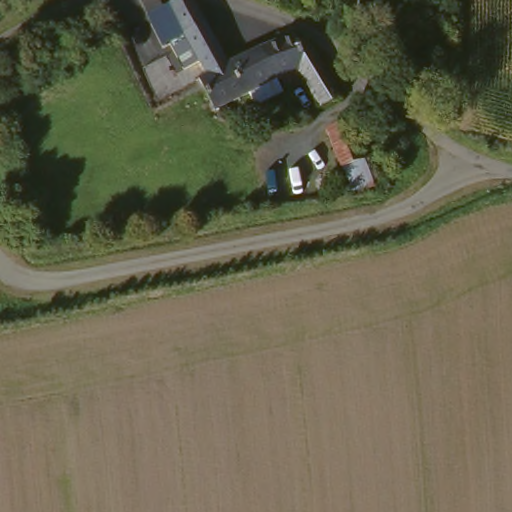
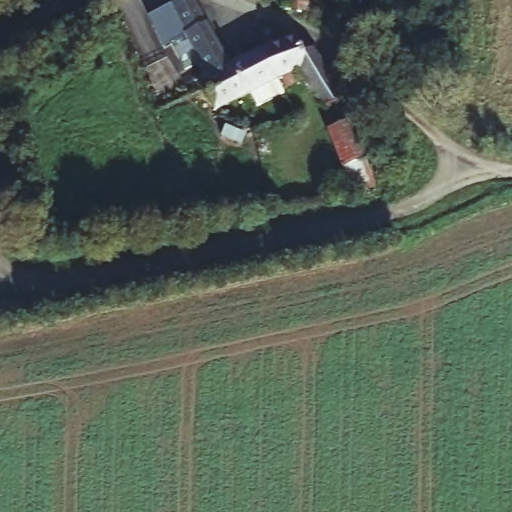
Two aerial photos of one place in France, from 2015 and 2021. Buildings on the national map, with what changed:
unchanged [(182,0),(184,3),(196,23),(218,66),(197,76),(175,34),(160,4),(179,0),(182,0)]
unchanged [(278,8),(278,0),(303,0),(302,10),(278,8)]
unchanged [(240,94),(206,110),(189,79),(190,79),(197,76),(218,66),(286,34),(288,40),(294,38),(303,47),(315,67),(331,95),(311,105),(300,74),(294,78),(277,87),(273,79),(267,81),(274,92),(246,105),(240,94)]
unchanged [(338,173),(322,134),(343,125),(359,164),(367,187),(346,195),(338,173)]

